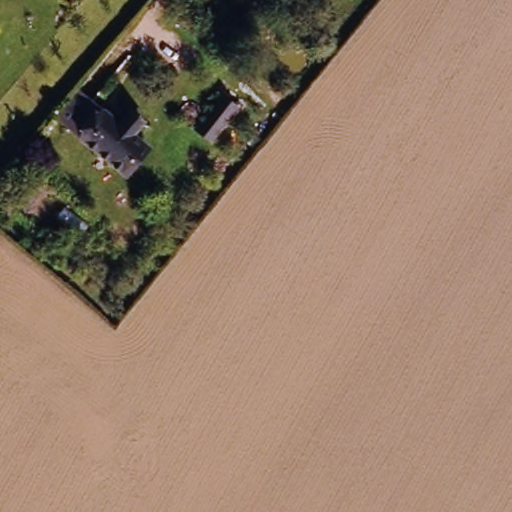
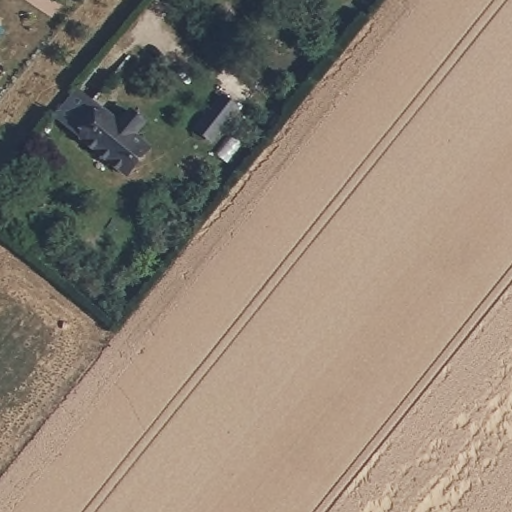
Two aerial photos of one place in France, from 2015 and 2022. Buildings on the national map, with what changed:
unchanged [(218,142),(204,131),(230,99),(244,109),(218,142)]
unchanged [(130,135),(141,123),(154,134),(143,146),(156,156),(133,184),(94,152),(66,129),(89,101),(118,125),(130,135)]

